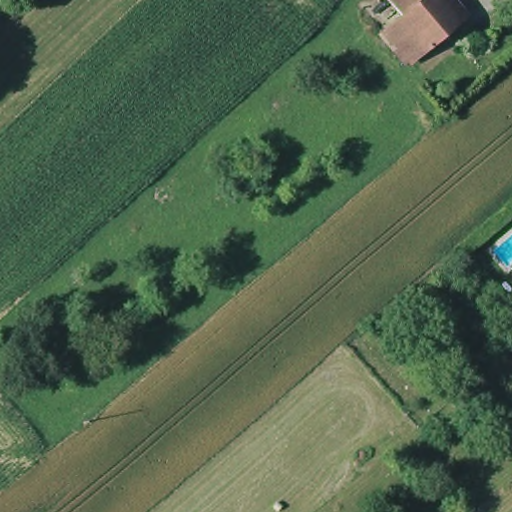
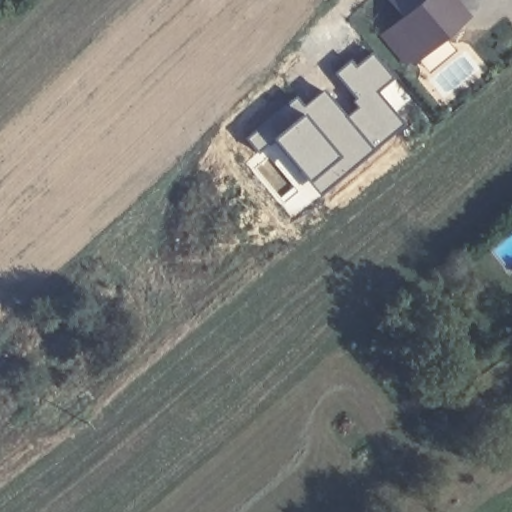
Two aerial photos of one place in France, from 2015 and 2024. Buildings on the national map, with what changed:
unchanged [(383,37),(407,19),(391,1),(392,0),(456,0),(471,18),(411,70),(383,37)]
new [(278,201),(248,164),(254,157),(258,161),(263,156),(259,153),(244,137),(296,95),(304,104),(323,89),(344,115),(356,105),(334,73),(349,60),(355,66),(371,53),(394,81),(379,93),(403,123),(319,196),(292,218),(278,201)]

